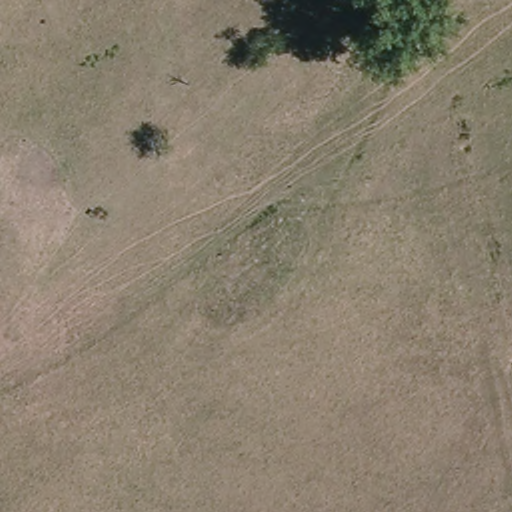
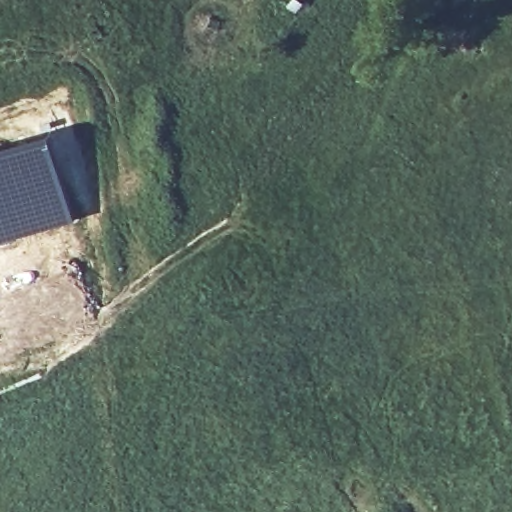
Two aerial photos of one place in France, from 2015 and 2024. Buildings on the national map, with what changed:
new [(51,134),(75,221),(4,242),(0,243),(0,148),(51,134)]

